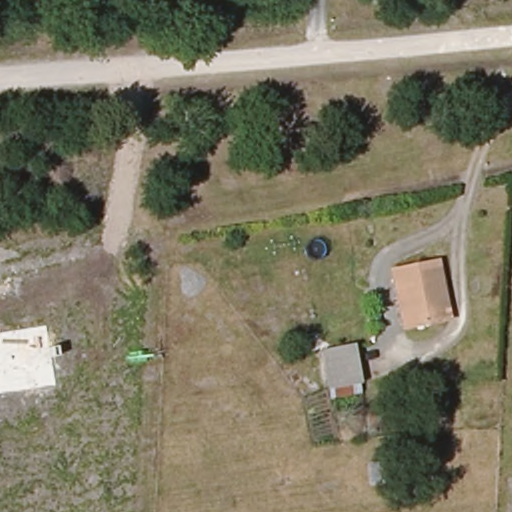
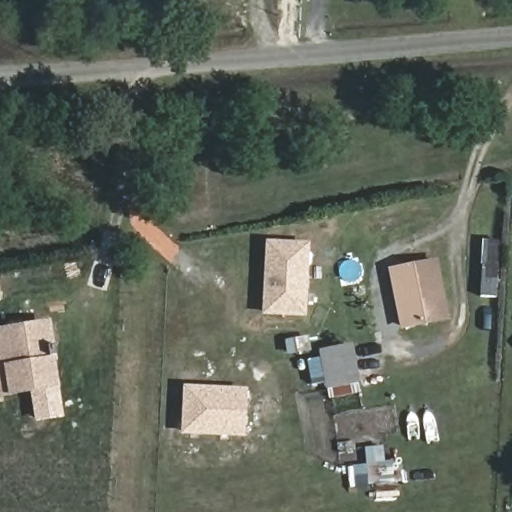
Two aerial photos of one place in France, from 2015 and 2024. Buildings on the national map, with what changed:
new [(272,244),(311,246),(308,314),(269,312),(272,244)]
unchanged [(403,327),(391,270),(437,261),(448,317),(403,327)]
new [(60,387),(9,395),(0,396),(0,328),(51,320),(55,355),(60,387)]
unchanged [(360,394),(332,402),(322,354),(352,347),(360,394)]
new [(182,385),(248,388),(246,438),(181,435),(182,385)]

